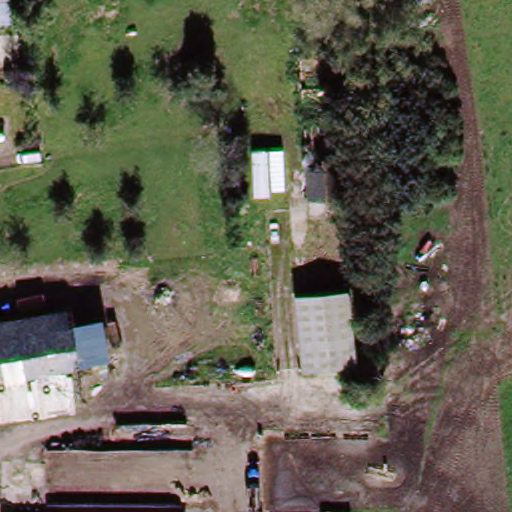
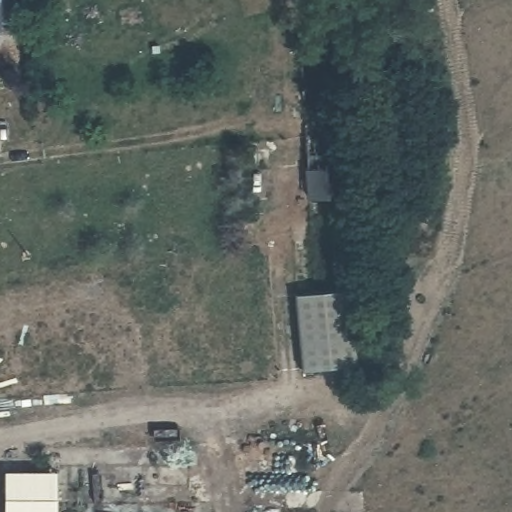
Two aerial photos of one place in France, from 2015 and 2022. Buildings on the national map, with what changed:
unchanged [(28,22),(0,22),(0,0),(28,0),(28,22)]
unchanged [(310,199),(302,51),(336,48),(343,197),(310,199)]
unchanged [(351,290),(358,366),(302,373),(295,295),(351,290)]
demolished [(77,370),(0,382),(0,319),(68,309),(72,324),(104,320),(109,364),(77,370)]
demolished [(82,410),(0,423),(0,382),(77,370),(82,410)]
new [(54,475),(55,512),(2,512),(2,474),(54,475)]

